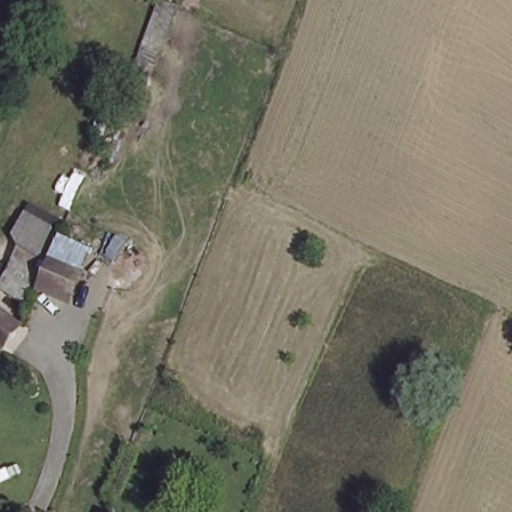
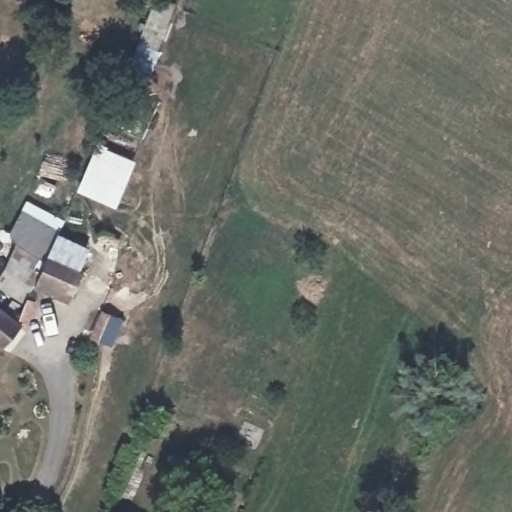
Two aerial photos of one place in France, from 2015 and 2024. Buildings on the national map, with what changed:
new [(96,143),(137,160),(117,209),(75,192),(96,143)]
unchanged [(75,290),(43,278),(42,283),(10,263),(24,241),(17,222),(27,205),(65,222),(53,253),(85,265),(75,290)]
unchanged [(3,347),(0,344),(0,309),(19,325),(3,347)]

